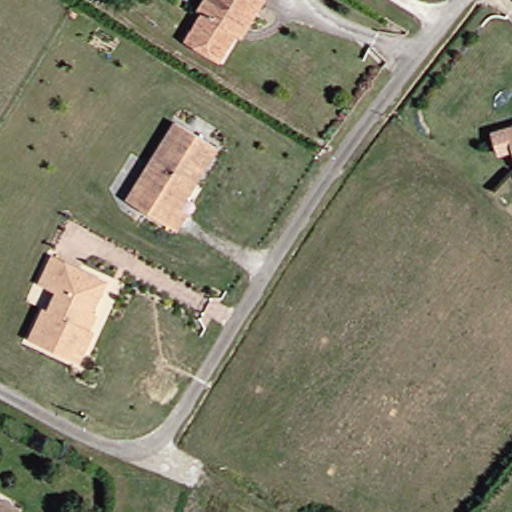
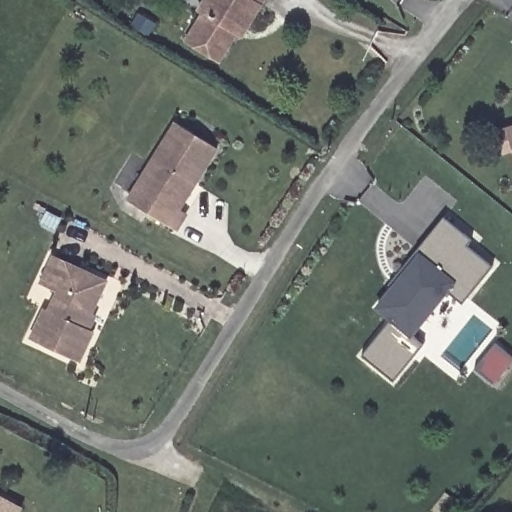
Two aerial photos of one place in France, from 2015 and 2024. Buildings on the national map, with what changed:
unchanged [(238,43),(221,63),(191,43),(207,16),(202,13),(211,0),(273,0),(265,11),(266,13),(244,46),(238,43)]
unchanged [(504,125),(512,123),(512,150),(512,149),(504,125)]
unchanged [(184,124),(227,150),(204,186),(201,183),(183,208),(194,217),(182,232),(135,200),(184,124)]
new [(388,314),(378,306),(387,296),(382,293),(445,219),(469,238),(465,244),(490,265),(459,302),(443,288),(408,331),(420,341),(389,378),(357,351),(388,314)]
unchanged [(39,304),(44,307),(60,275),(41,264),(47,252),(102,279),(78,323),(87,328),(72,358),(25,334),(39,304)]
unchanged [(24,512),(0,512),(0,492),(19,502),(27,507),(24,512)]

